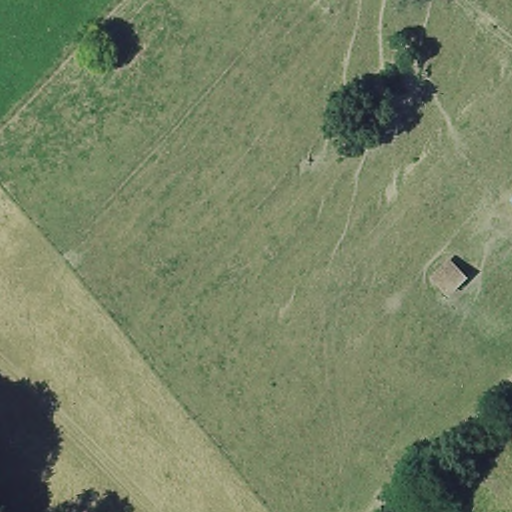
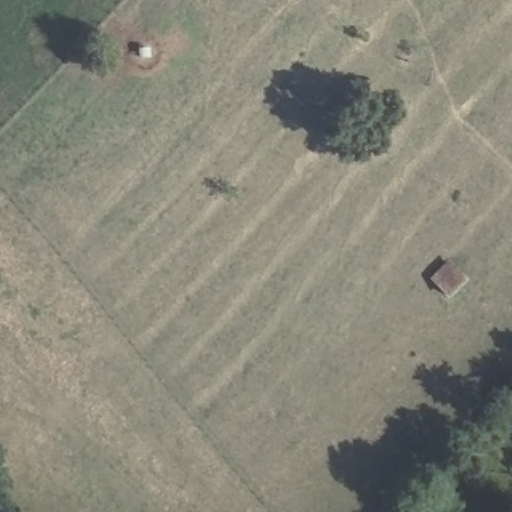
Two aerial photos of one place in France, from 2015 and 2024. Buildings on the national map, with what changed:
unchanged [(467,281),(449,299),(431,281),(449,263),(467,281)]

